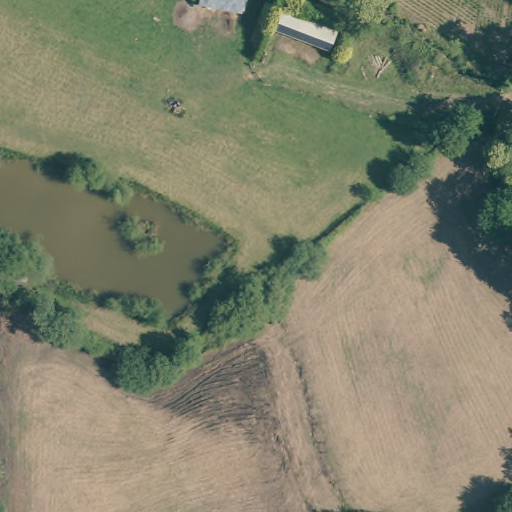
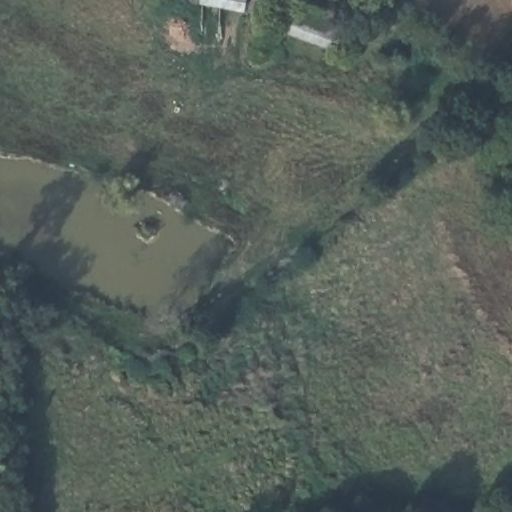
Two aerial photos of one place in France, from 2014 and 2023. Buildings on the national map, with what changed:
unchanged [(337,32),(329,54),(279,35),(287,14),(337,32)]

